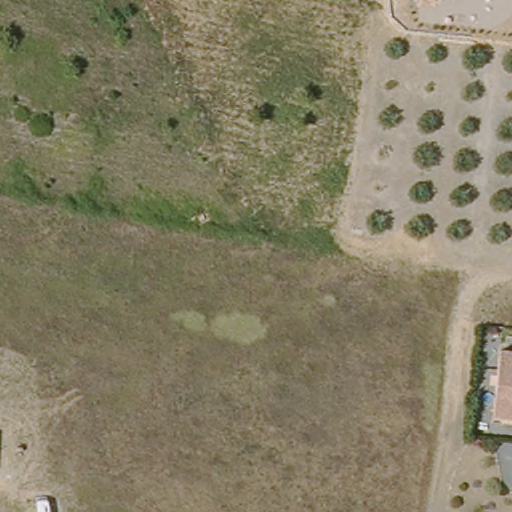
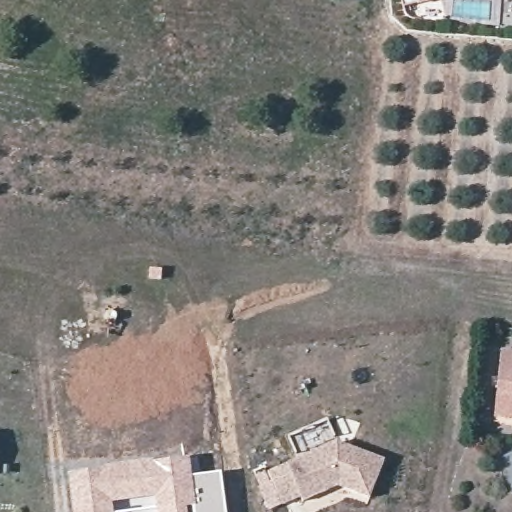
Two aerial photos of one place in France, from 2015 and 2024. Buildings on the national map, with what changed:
new [(401,0),(432,0),(403,8),(401,0)]
unchanged [(500,414),(506,347),(512,347),(512,416),(500,414)]
new [(384,459),(370,497),(338,487),(303,502),(301,498),(283,505),(268,472),(337,441),(384,459)]
new [(129,462),(188,456),(191,475),(221,472),(226,512),(156,512),(154,499),(113,504),(114,512),(73,512),(66,474),(129,462)]

